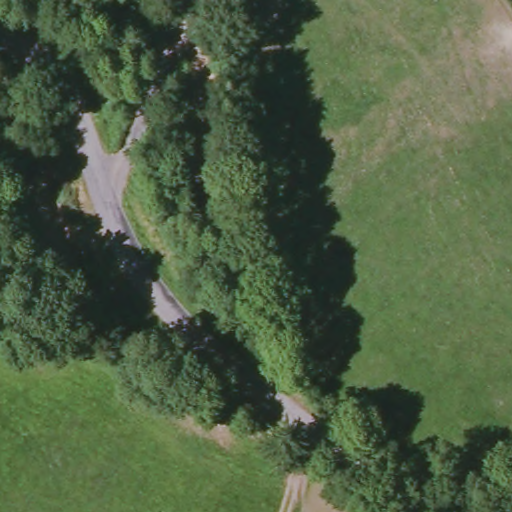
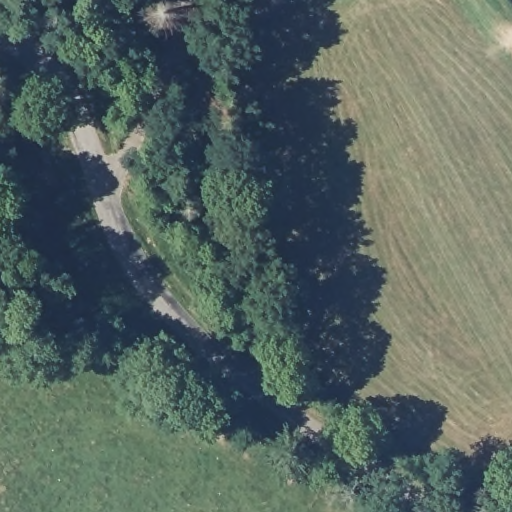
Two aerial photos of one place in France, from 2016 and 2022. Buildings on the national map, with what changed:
[]

